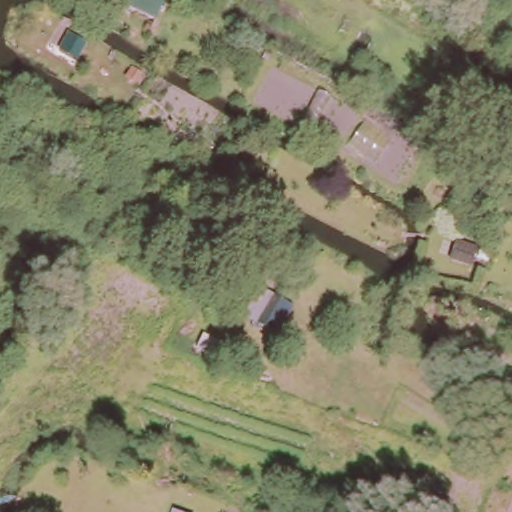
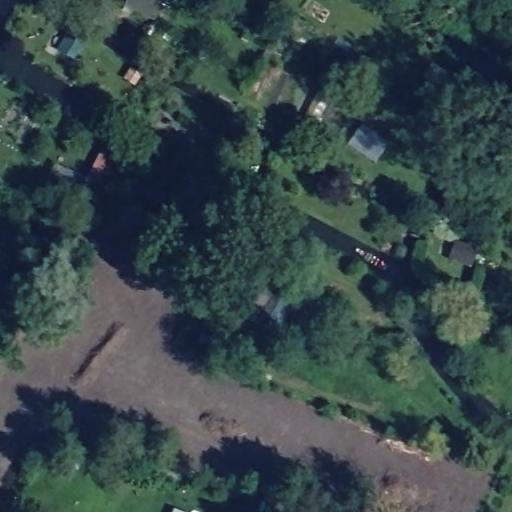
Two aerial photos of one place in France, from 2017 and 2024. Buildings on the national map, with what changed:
unchanged [(122,0),(162,0),(152,25),(118,11),(122,0)]
unchanged [(73,41),(90,50),(83,63),(66,54),(73,41)]
unchanged [(140,75),(147,79),(143,86),(136,82),(140,75)]
unchanged [(36,181),(44,166),(65,178),(56,193),(36,181)]
unchanged [(255,336),(250,332),(240,324),(259,299),(270,307),(275,311),(255,336)]

